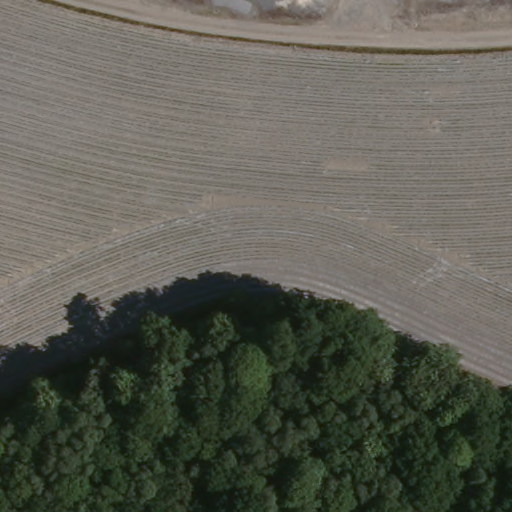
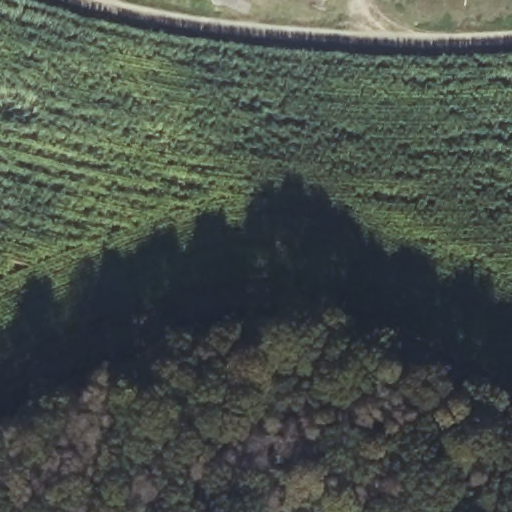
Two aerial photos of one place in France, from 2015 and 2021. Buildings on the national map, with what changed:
unchanged [(324,0),(323,1),(315,0),(324,0)]

